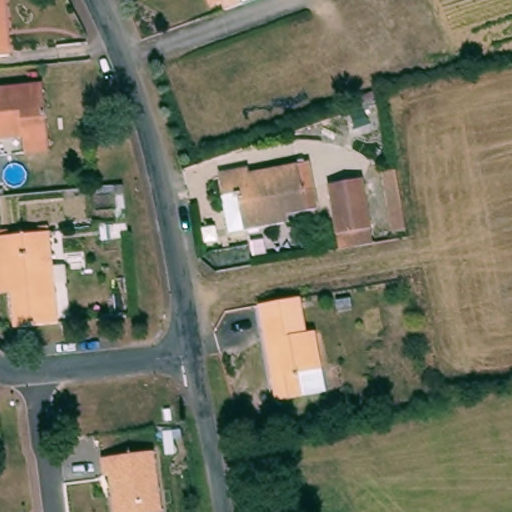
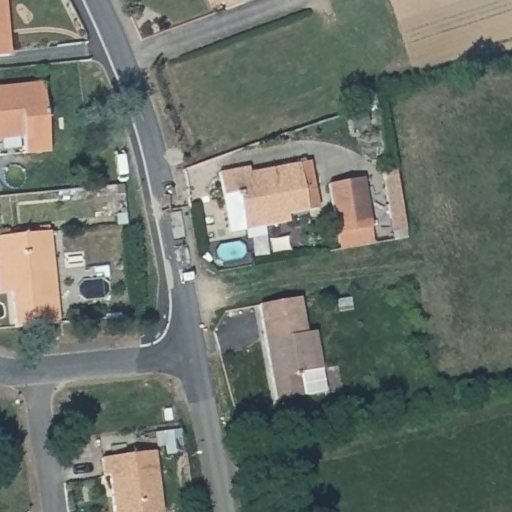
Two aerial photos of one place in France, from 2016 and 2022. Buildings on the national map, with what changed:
unchanged [(9,0),(14,56),(0,57),(0,0),(9,0)]
unchanged [(242,11),(226,16),(223,6),(218,8),(215,0),(246,0),(239,2),(242,11)]
unchanged [(48,84),(55,151),(30,153),(28,132),(3,135),(3,138),(0,138),(0,89),(48,84)]
unchanged [(274,228),(255,232),(241,236),(232,201),(227,176),(262,167),(263,172),(306,162),(319,208),(297,213),(300,222),(274,228)]
unchanged [(401,166),(412,227),(397,230),(385,170),(401,166)]
unchanged [(376,246),(342,253),(331,186),(367,180),(376,246)]
unchanged [(0,260),(0,230),(15,229),(16,235),(20,235),(19,229),(36,227),(37,233),(45,232),(44,226),(54,225),(55,231),(64,322),(21,327),(17,291),(4,292),(0,260)]
unchanged [(289,302),(296,337),(320,333),(330,394),(278,403),(260,307),(289,302)]
unchanged [(109,476),(104,476),(102,458),(155,452),(163,512),(113,512),(109,476)]

